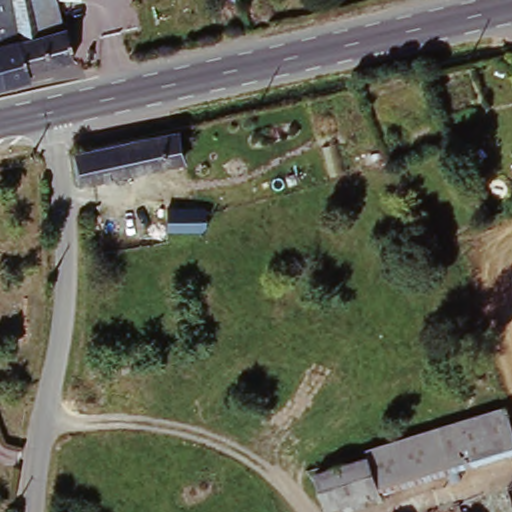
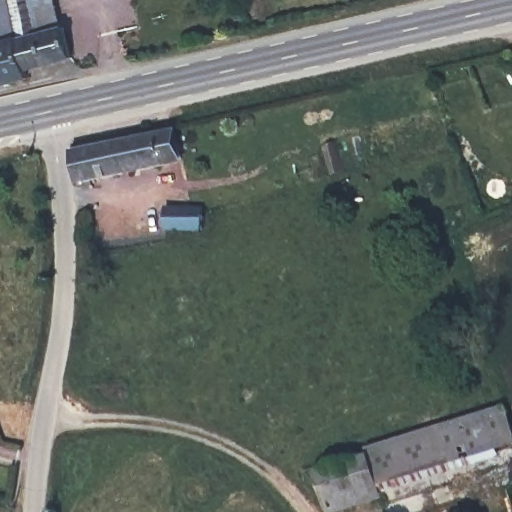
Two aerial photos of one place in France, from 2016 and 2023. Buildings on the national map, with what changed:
unchanged [(65,28),(18,42),(7,0),(56,0),(65,28)]
unchanged [(65,28),(74,57),(27,72),(18,42),(65,28)]
unchanged [(0,47),(18,42),(27,72),(29,81),(3,88),(0,77),(0,47)]
unchanged [(0,89),(0,77),(3,88),(0,89)]
unchanged [(174,132),(182,164),(164,168),(81,184),(74,152),(156,136),(174,132)]
unchanged [(173,213),(198,215),(205,215),(203,230),(171,231),(172,219),(173,213)]
unchanged [(445,469),(438,439),(436,433),(484,421),(511,414),(512,417),(512,451),(498,455),(445,469)]
unchanged [(445,469),(446,472),(325,504),(317,471),(438,439),(445,469)]

